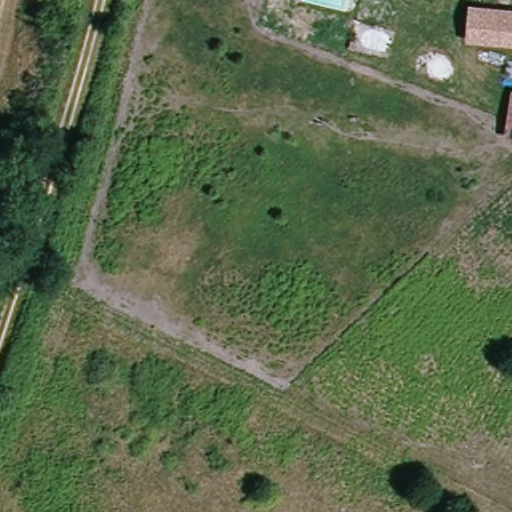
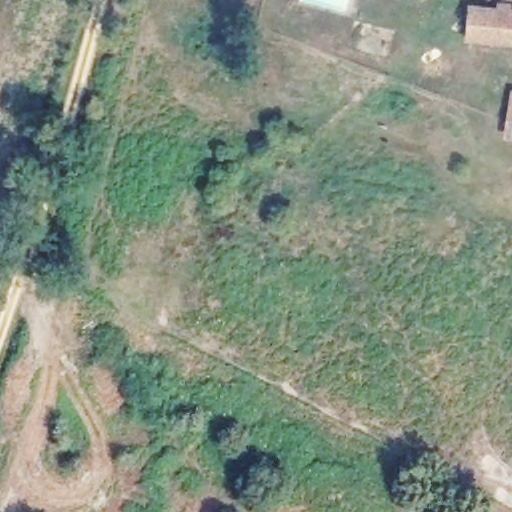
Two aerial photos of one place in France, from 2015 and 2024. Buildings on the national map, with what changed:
unchanged [(470,33),(473,4),(512,9),(512,38),(470,33)]
unchanged [(442,72),(443,59),(468,61),(468,74),(442,72)]

